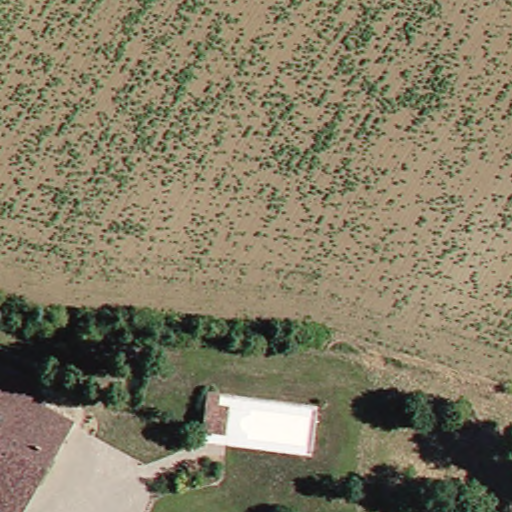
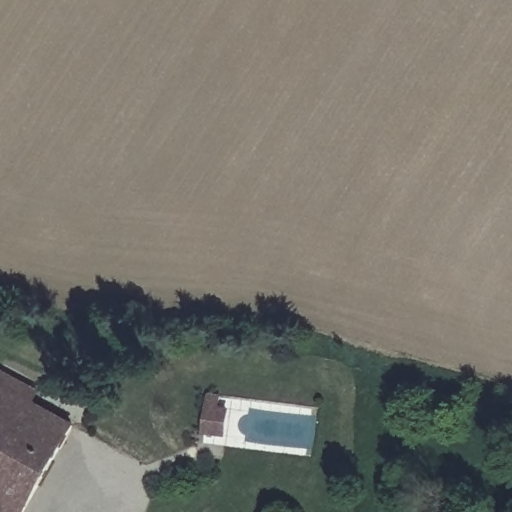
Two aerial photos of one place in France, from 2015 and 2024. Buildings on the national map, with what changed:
unchanged [(0,402),(6,386),(82,428),(49,487),(25,473),(6,508),(0,505),(0,402)]
unchanged [(36,512),(13,512),(6,508),(25,473),(49,487),(36,512)]

